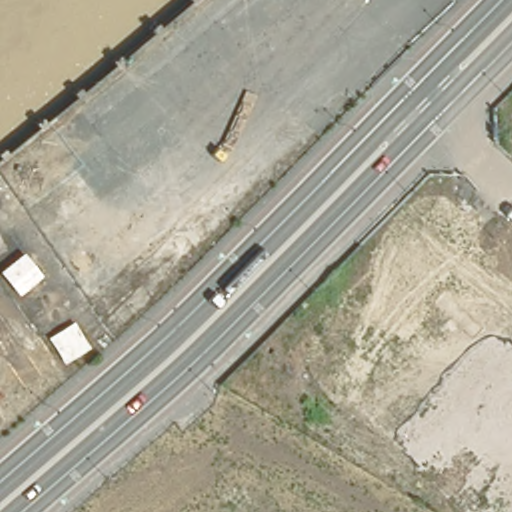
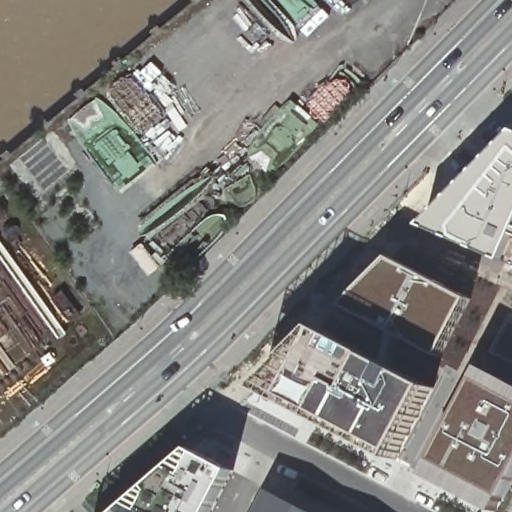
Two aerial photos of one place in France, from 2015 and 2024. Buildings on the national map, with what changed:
new [(425,224),(512,135),(512,265),(425,224)]
new [(473,290),(427,377),(443,387),(400,457),(270,383),(391,246),(473,290)]
new [(491,351),(508,320),(512,321),(512,362),(491,351)]
new [(512,390),(512,482),(504,497),(431,456),(474,372),(512,390)]
new [(208,512),(112,512),(189,441),(229,466),(208,512)]
new [(314,512),(258,512),(270,489),(314,512)]

